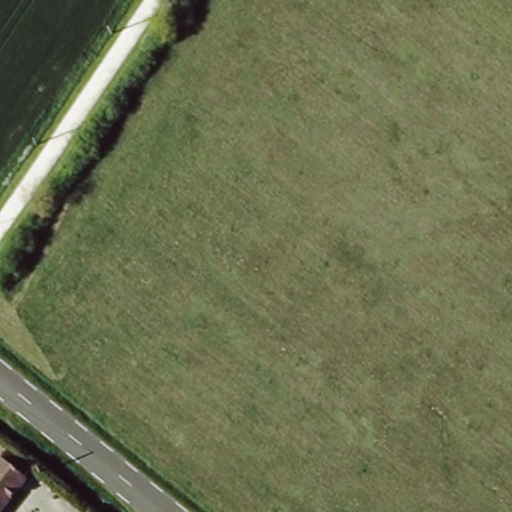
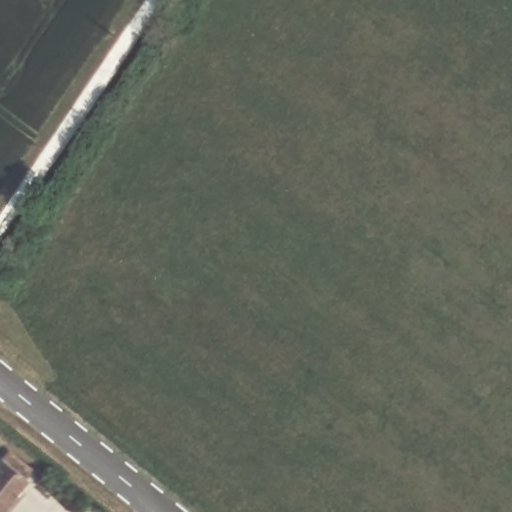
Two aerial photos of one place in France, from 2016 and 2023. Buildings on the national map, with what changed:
unchanged [(2,512),(0,512),(0,459),(27,477),(2,512)]

